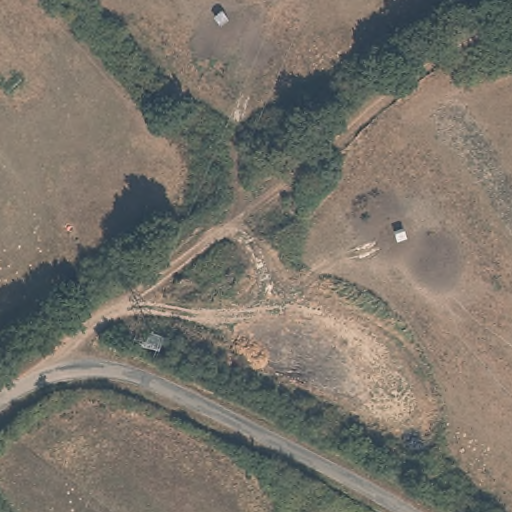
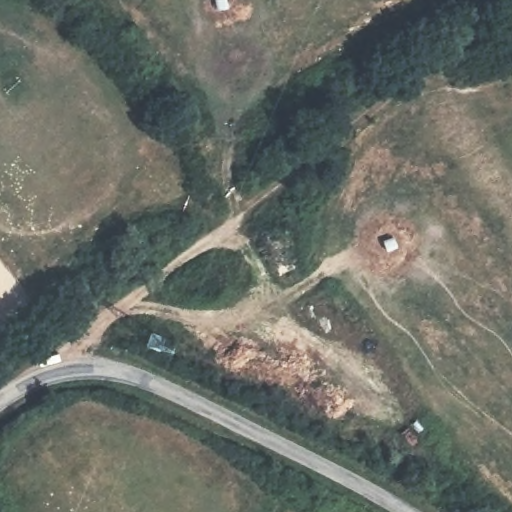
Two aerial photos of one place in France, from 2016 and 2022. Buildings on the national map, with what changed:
[]

